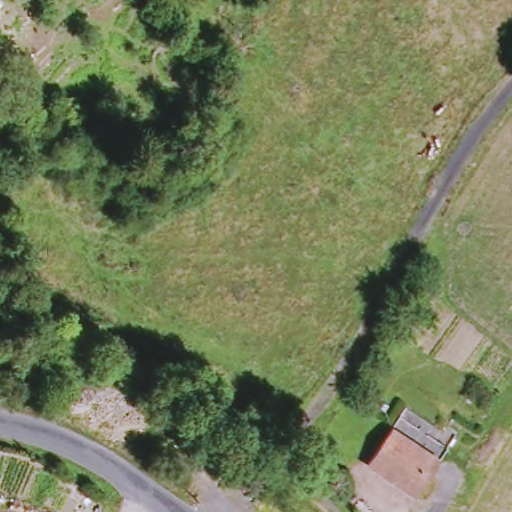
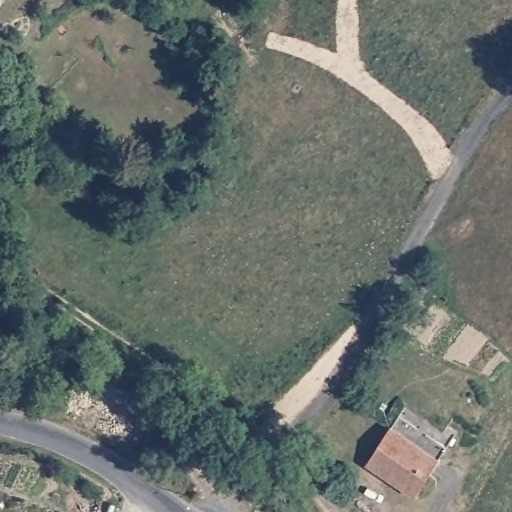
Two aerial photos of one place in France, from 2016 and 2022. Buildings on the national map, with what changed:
unchanged [(5,2),(0,8),(0,0),(2,0),(5,2)]
unchanged [(423,493),(375,459),(407,414),(455,447),(423,493)]

